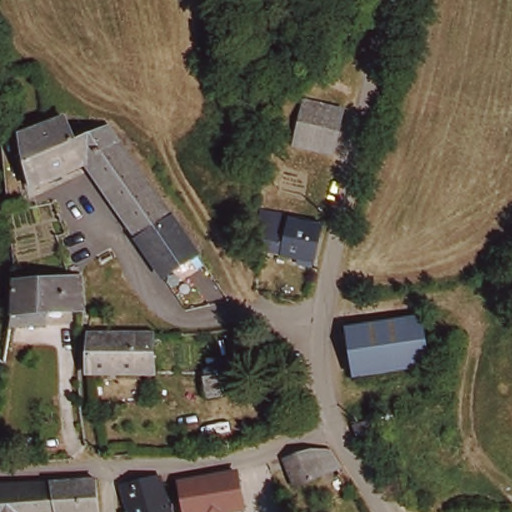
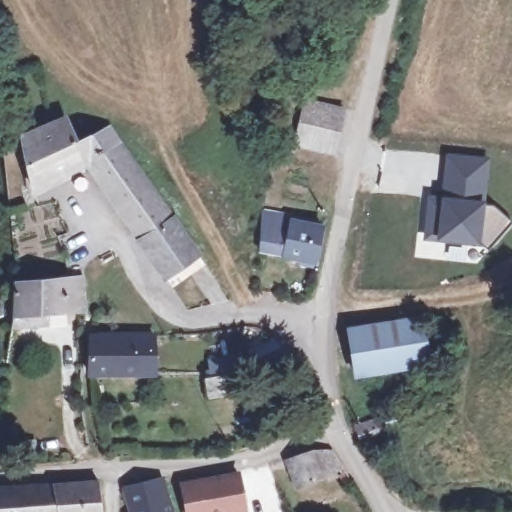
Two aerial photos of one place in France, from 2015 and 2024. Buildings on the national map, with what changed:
unchanged [(313,102),(337,107),(328,152),(303,147),(310,108),(313,102)]
unchanged [(15,134),(58,115),(71,139),(41,150),(38,144),(22,151),(15,134)]
unchanged [(38,144),(41,150),(71,139),(112,124),(175,220),(140,241),(90,166),(37,185),(22,151),(38,144)]
new [(425,192),(439,193),(444,151),(490,156),(485,201),(494,205),(511,220),(487,250),(480,246),(435,240),(422,239),(425,192)]
unchanged [(308,265),(277,258),(278,255),(270,254),(252,251),(255,220),(257,209),(274,213),(282,215),(281,225),(315,232),(308,265)]
unchanged [(175,220),(202,262),(168,283),(140,241),(175,220)]
unchanged [(15,310),(17,300),(15,279),(65,279),(80,279),(81,298),(80,311),(15,310)]
unchanged [(358,380),(352,334),(421,322),(428,362),(429,368),(415,370),(358,380)]
unchanged [(150,338),(151,376),(87,376),(88,340),(150,338)]
unchanged [(285,349),(293,369),(269,381),(259,362),(285,349)]
unchanged [(253,384),(255,400),(222,402),(222,385),(253,384)]
unchanged [(396,453),(374,463),(367,441),(387,429),(396,453)]
unchanged [(322,458),(332,457),(338,480),(290,493),(280,466),(322,456),(322,458)]
unchanged [(160,476),(170,512),(130,512),(123,486),(160,476)]
unchanged [(222,512),(190,512),(186,487),(237,478),(242,508),(222,512)]
unchanged [(99,512),(0,512),(0,491),(99,488),(99,512)]

